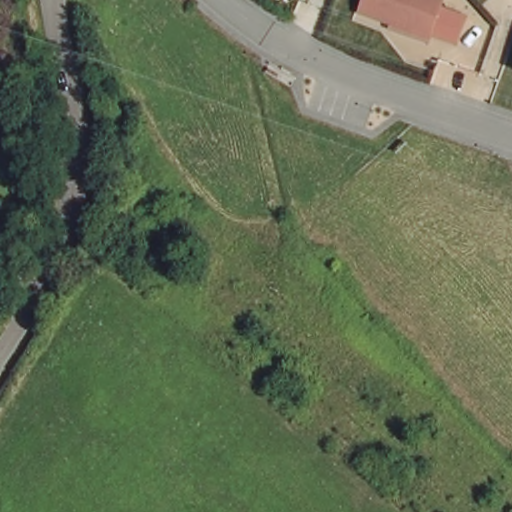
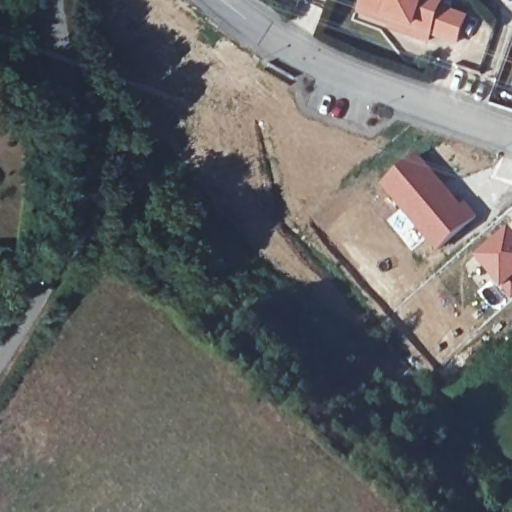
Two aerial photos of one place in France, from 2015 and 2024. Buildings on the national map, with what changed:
unchanged [(412,33),(413,29),(360,9),(363,0),(442,0),(427,39),(412,33)]
new [(418,152),(450,187),(477,215),(435,250),(380,185),(418,152)]
new [(512,228),(512,297),(510,299),(477,257),(512,228)]

